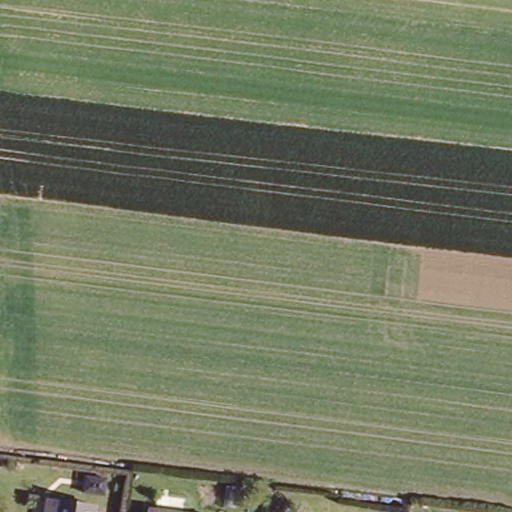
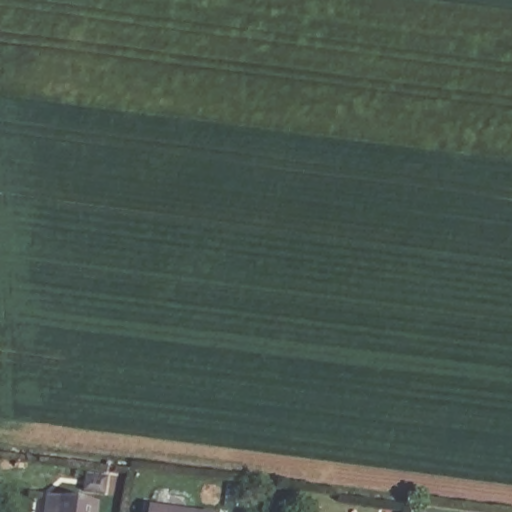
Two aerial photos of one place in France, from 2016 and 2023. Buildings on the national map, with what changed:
unchanged [(98,504),(97,512),(48,512),(49,499),(98,504)]
unchanged [(153,509),(173,512),(153,512),(153,509)]

